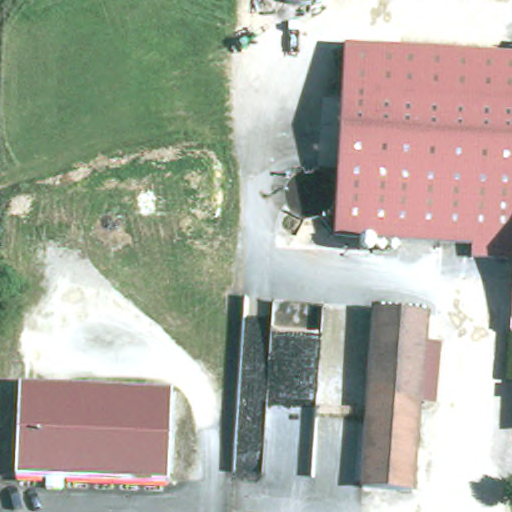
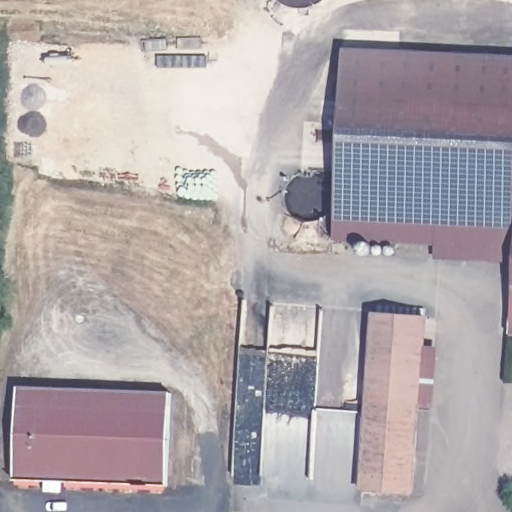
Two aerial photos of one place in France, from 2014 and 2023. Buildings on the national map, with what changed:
unchanged [(350,56),(512,63),(512,253),(342,245),(350,56)]
unchanged [(380,316),(429,320),(427,343),(379,339),(380,316)]
unchanged [(368,488),(379,339),(427,343),(416,492),(368,488)]
unchanged [(19,386),(171,392),(167,484),(15,478),(19,386)]

